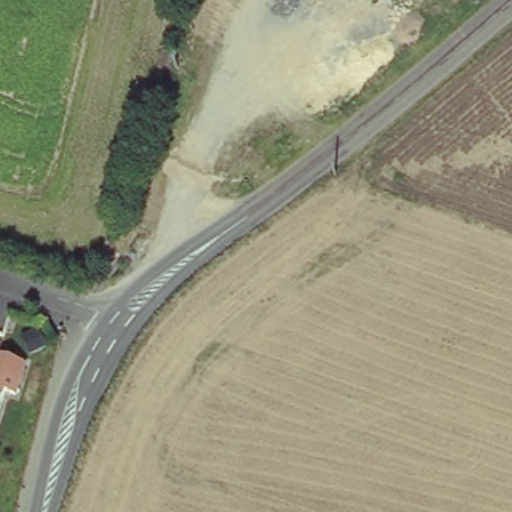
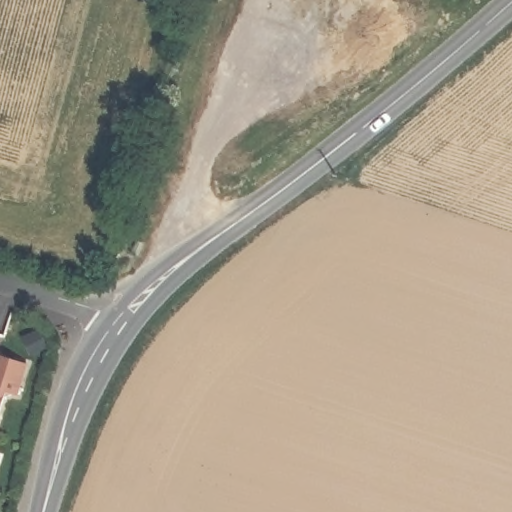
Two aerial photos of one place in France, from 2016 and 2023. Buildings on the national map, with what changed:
unchanged [(19,394),(7,391),(0,416),(0,354),(28,362),(19,394)]

